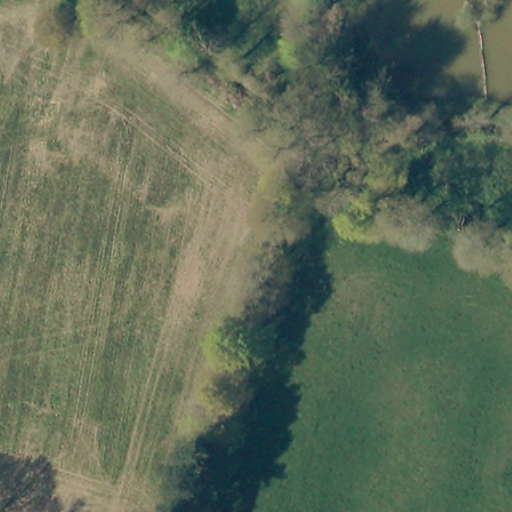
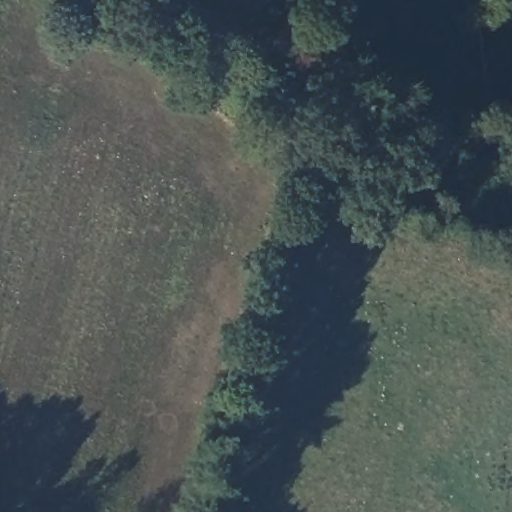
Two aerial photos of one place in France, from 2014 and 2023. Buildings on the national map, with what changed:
[]

